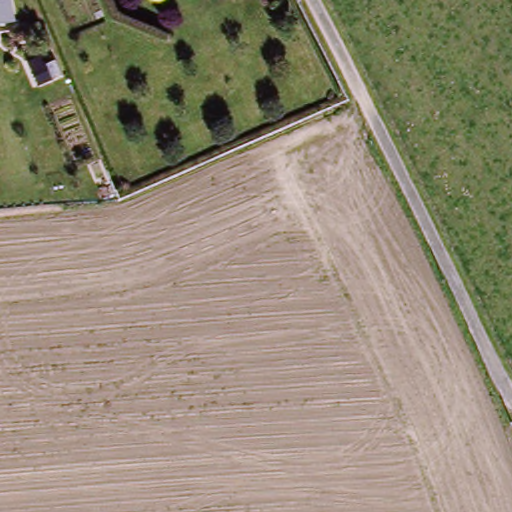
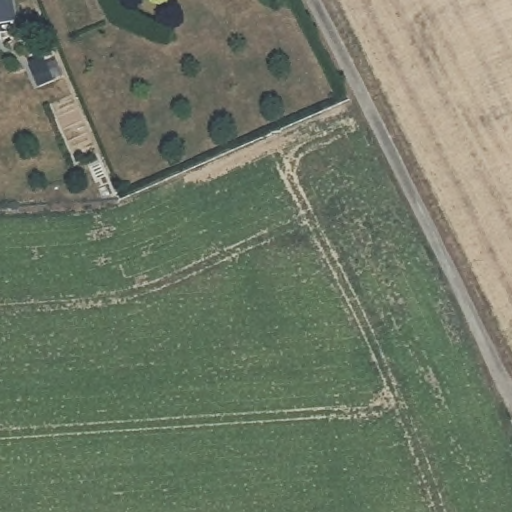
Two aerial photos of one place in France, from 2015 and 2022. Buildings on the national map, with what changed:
unchanged [(20,19),(0,22),(0,0),(16,0),(20,19)]

